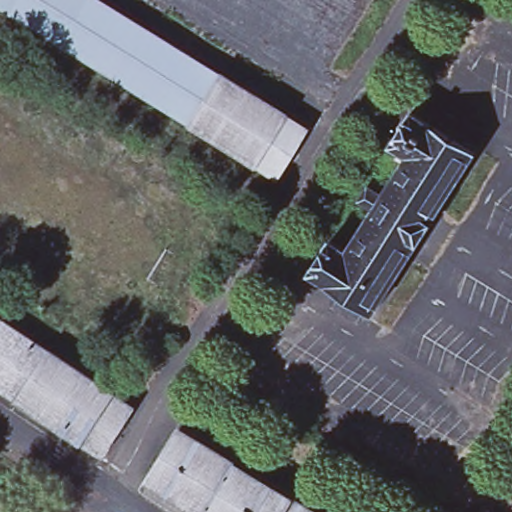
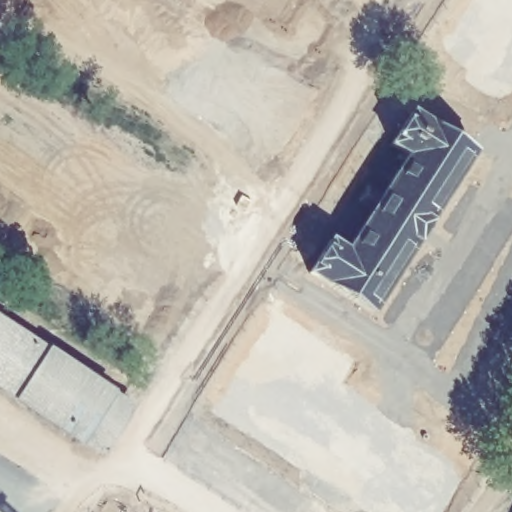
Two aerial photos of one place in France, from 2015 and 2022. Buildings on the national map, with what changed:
demolished [(257,166),(195,128),(196,126),(32,25),(32,26),(10,14),(11,12),(0,5),(0,0),(94,0),(225,80),(225,79),(287,117),(287,118),(309,132),(280,178),(259,165),(257,166)]
unchanged [(482,145),(380,306),(316,265),(337,234),(354,244),(380,203),(365,194),(374,180),(389,189),(410,155),(402,151),(407,144),(397,137),(419,104),(482,145)]
unchanged [(77,437),(15,397),(16,395),(0,385),(0,320),(45,350),(47,349),(109,390),(108,391),(128,405),(99,450),(78,436),(77,437)]
unchanged [(180,432),(237,467),(237,470),(289,501),(290,499),(311,512),(192,512),(149,486),(180,432)]

